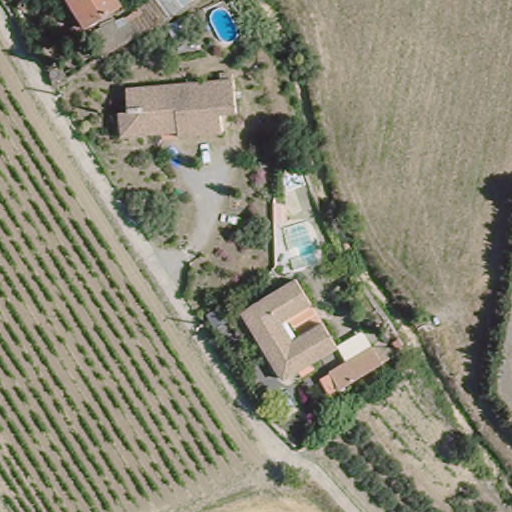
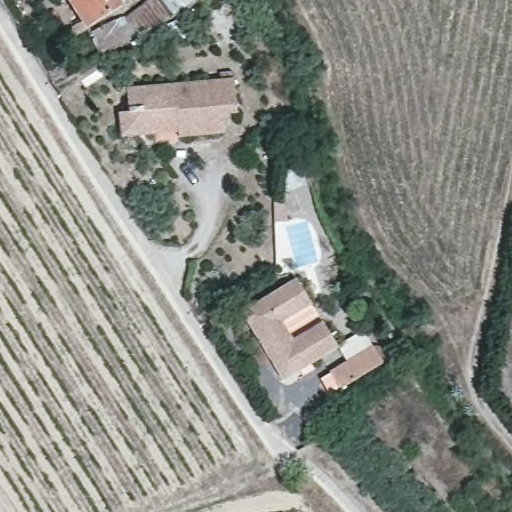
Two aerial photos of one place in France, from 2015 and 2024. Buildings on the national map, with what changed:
unchanged [(103,58),(66,0),(127,0),(130,4),(114,14),(122,24),(140,0),(203,0),(175,26),(103,58)]
unchanged [(126,114),(134,113),(130,94),(225,77),(231,116),(214,119),(215,131),(186,137),(185,127),(152,133),(130,136),(126,114)]
unchanged [(294,281),(305,304),(280,320),(293,340),(319,326),(332,352),(281,383),(239,314),(294,281)]
unchanged [(384,361),(342,389),(332,373),(373,344),(384,361)]

